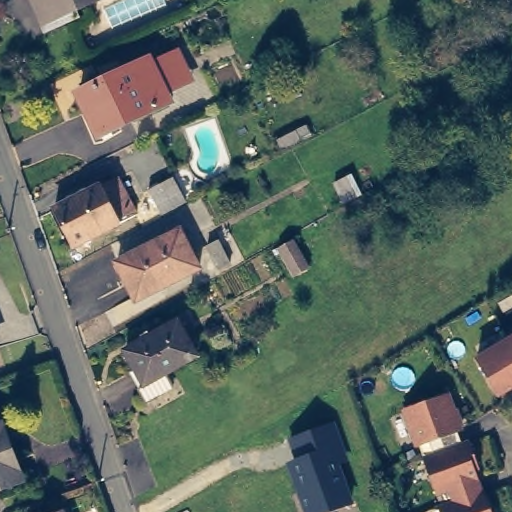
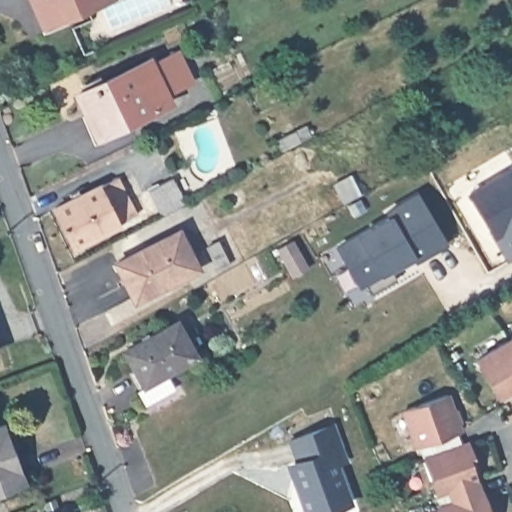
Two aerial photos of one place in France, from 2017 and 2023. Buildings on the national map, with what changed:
unchanged [(40,13),(33,0),(69,0),(40,13)]
unchanged [(146,57),(165,98),(97,129),(78,88),(146,57)]
new [(471,193),(510,169),(512,172),(512,260),(510,261),(471,193)]
new [(174,178),(188,201),(162,214),(149,191),(174,178)]
unchanged [(111,181),(130,218),(68,247),(50,211),(111,181)]
new [(415,262),(413,260),(392,272),(396,279),(370,293),(365,285),(360,288),(335,246),(355,234),(391,213),(387,207),(418,190),(447,244),(415,262)]
unchanged [(182,227),(200,263),(141,293),(122,256),(182,227)]
unchanged [(301,238),(318,266),(304,274),(286,246),(301,238)]
unchanged [(180,321),(197,355),(145,381),(128,348),(180,321)]
unchanged [(475,351),(512,329),(512,379),(497,387),(475,351)]
unchanged [(441,505),(428,469),(438,466),(433,453),(425,455),(419,438),(415,440),(408,421),(452,405),(465,441),(461,443),(466,456),(473,453),(480,472),(482,480),(478,482),(486,503),(487,503),(491,512),(458,512),(453,500),(441,505)]
unchanged [(340,465),(353,504),(331,512),(303,512),(286,464),(295,462),(287,439),(335,422),(349,461),(340,465)]
unchanged [(12,427),(31,481),(0,491),(0,431),(12,427)]
unchanged [(65,512),(56,512),(64,509),(65,512)]

